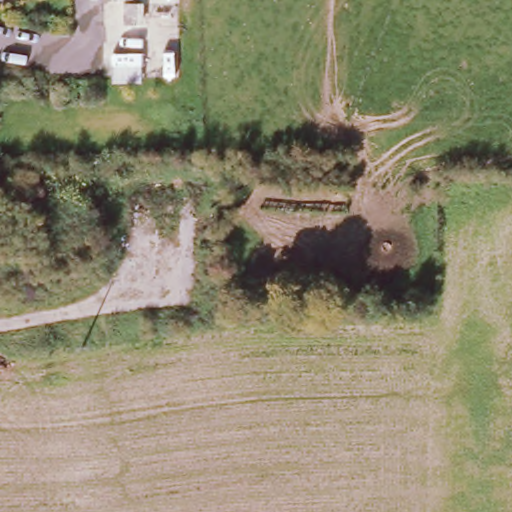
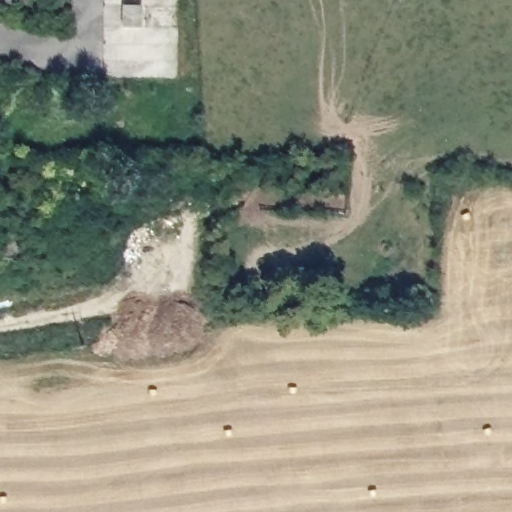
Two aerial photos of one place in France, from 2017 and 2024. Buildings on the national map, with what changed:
unchanged [(151,9),(152,32),(139,32),(138,9),(151,9)]

